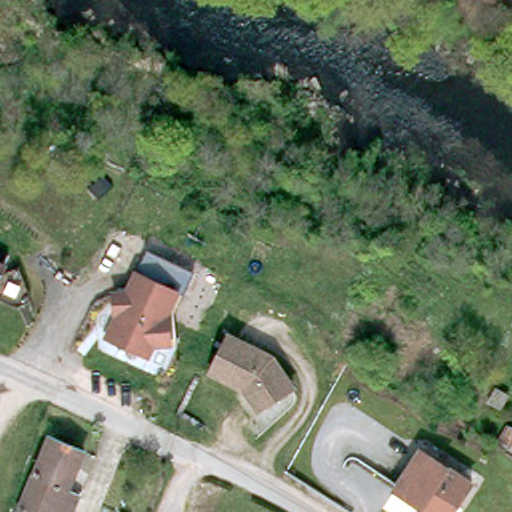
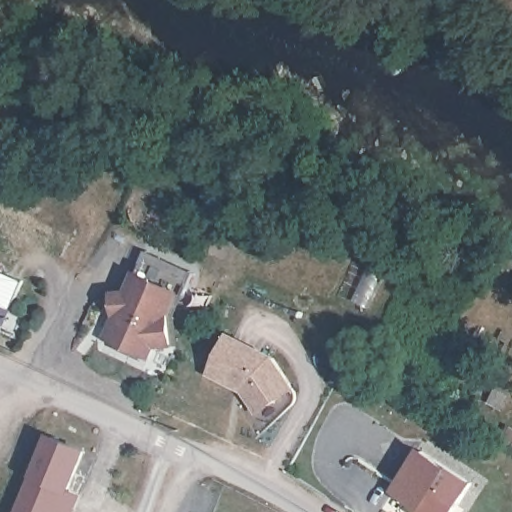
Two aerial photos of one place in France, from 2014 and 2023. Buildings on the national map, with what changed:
unchanged [(0,282),(0,263),(3,264),(6,270),(0,282)]
unchanged [(92,355),(105,330),(114,312),(113,288),(126,287),(136,268),(177,288),(166,310),(168,340),(150,340),(144,351),(127,342),(115,342),(106,362),(92,355)]
unchanged [(272,352),(292,384),(257,405),(244,383),(213,368),(232,331),(272,352)]
unchanged [(69,512),(21,512),(19,511),(51,437),(83,450),(66,489),(77,494),(71,507),(69,512)]
unchanged [(452,512),(424,512),(421,510),(426,500),(417,494),(414,498),(397,487),(420,446),(472,478),(452,512)]

